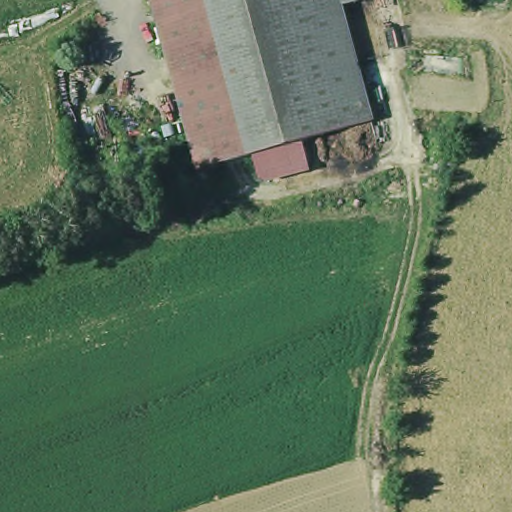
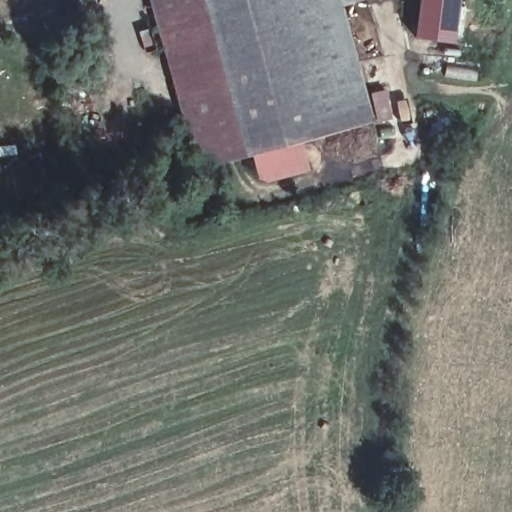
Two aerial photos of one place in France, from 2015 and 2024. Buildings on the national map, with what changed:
unchanged [(197,165),(165,47),(152,0),(353,0),(341,3),(371,119),(197,165)]
new [(453,41),(415,36),(419,0),(458,0),(453,41)]

